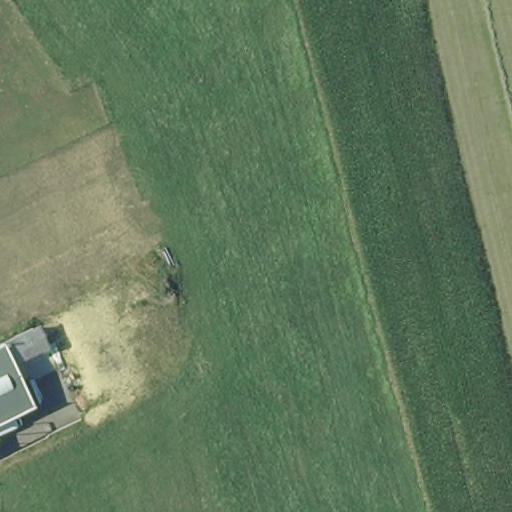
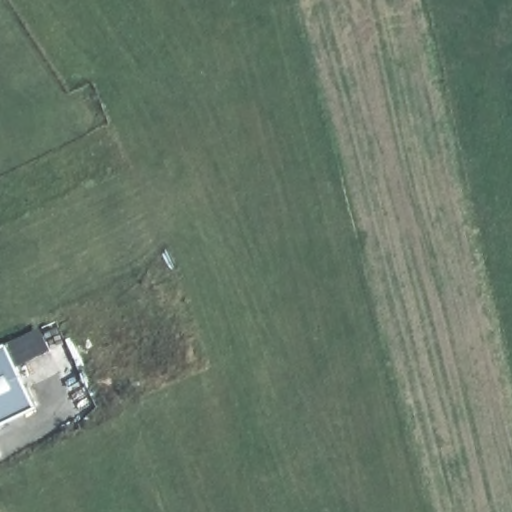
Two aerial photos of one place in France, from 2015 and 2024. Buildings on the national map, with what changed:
unchanged [(0,347),(8,342),(39,405),(0,425),(0,347)]

